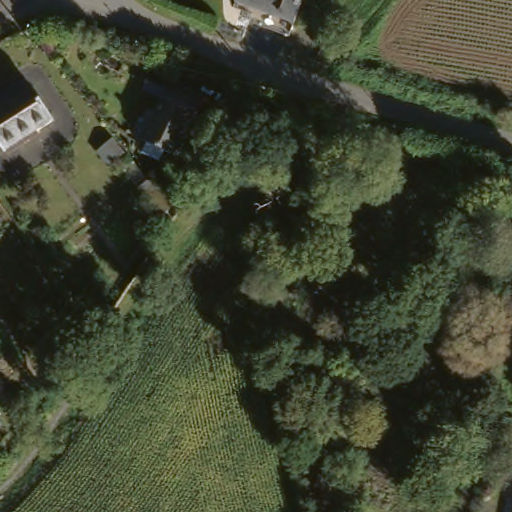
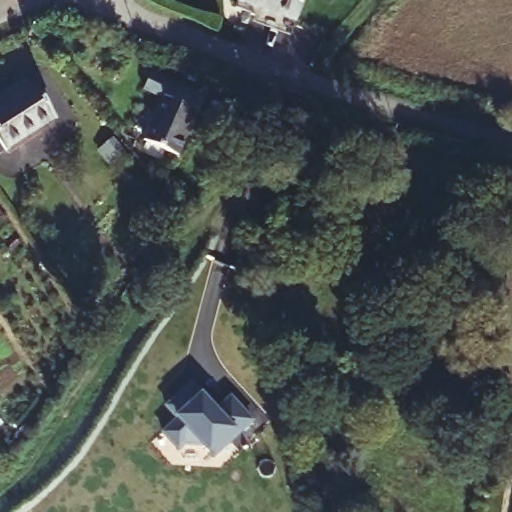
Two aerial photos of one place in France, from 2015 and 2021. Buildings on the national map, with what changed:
unchanged [(244,3),(245,0),(303,0),(303,2),(299,17),(282,13),(244,3)]
unchanged [(211,84),(204,106),(209,109),(197,143),(193,151),(153,137),(177,72),(211,84)]
unchanged [(39,80),(59,112),(9,146),(0,131),(0,106),(39,80)]
unchanged [(144,185),(156,176),(181,204),(169,214),(144,185)]
new [(201,391),(218,410),(231,394),(256,420),(213,460),(208,455),(204,450),(184,445),(178,451),(161,433),(179,422),(176,416),(166,405),(191,380),(201,391)]

